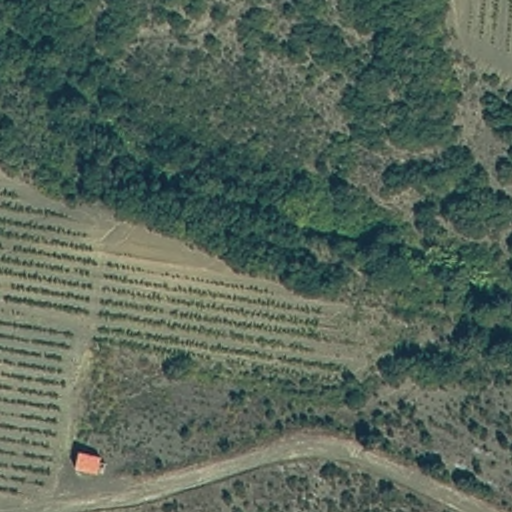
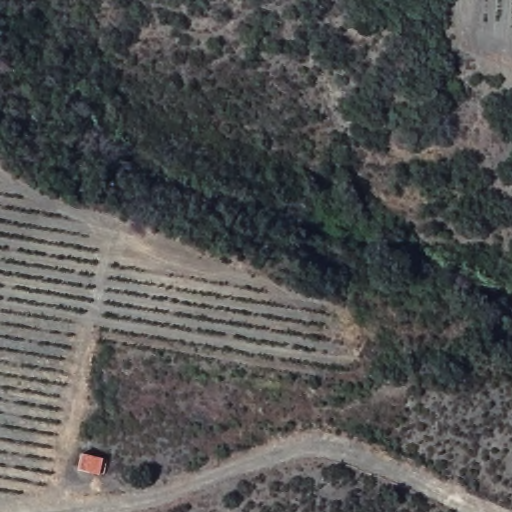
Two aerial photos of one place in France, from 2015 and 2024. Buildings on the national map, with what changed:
unchanged [(98,455),(95,471),(76,469),(78,453),(98,455)]

